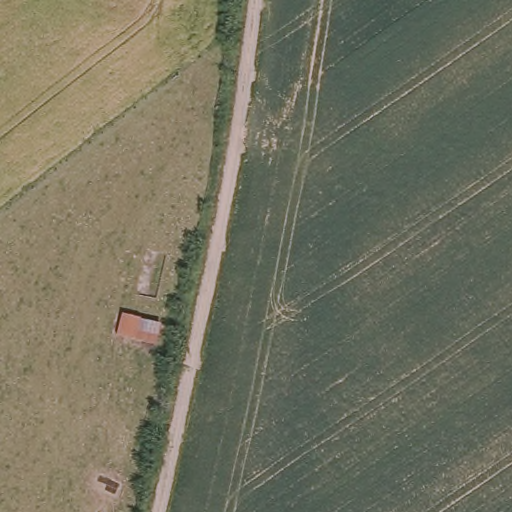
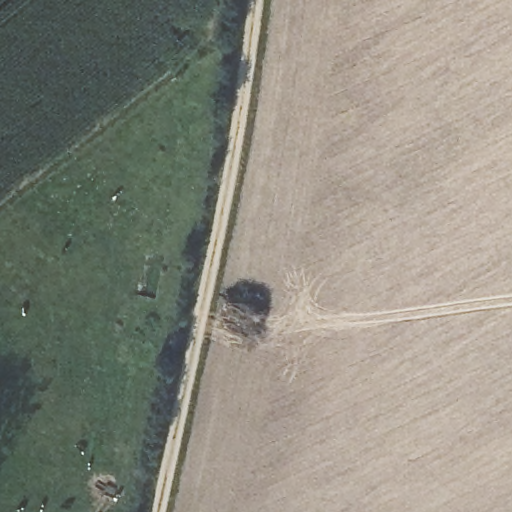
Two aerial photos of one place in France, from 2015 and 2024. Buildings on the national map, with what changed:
unchanged [(167,324),(162,348),(115,334),(119,311),(167,324)]

